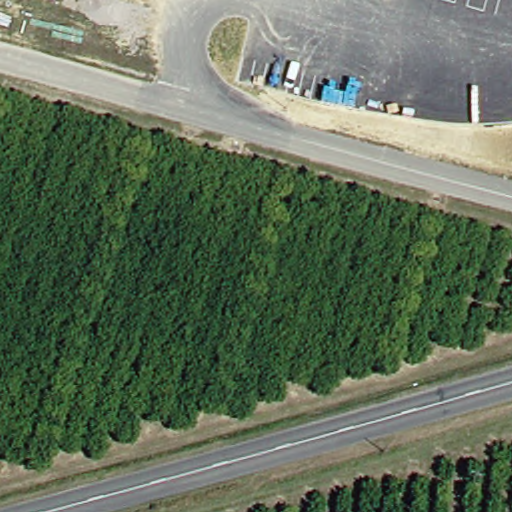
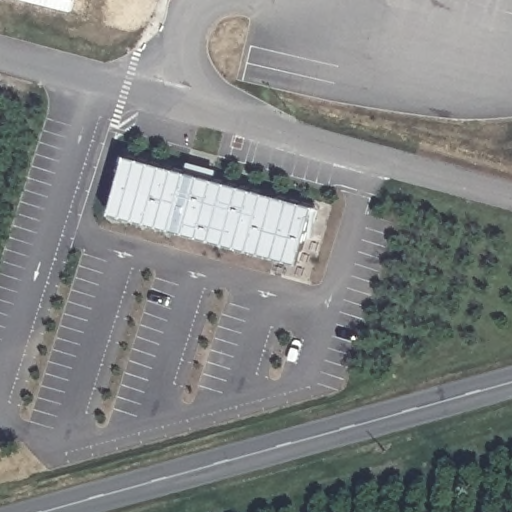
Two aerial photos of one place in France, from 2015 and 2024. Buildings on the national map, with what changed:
new [(189,161),(216,169),(214,178),(314,205),(298,263),(111,213),(126,155),(186,170),(189,161)]

